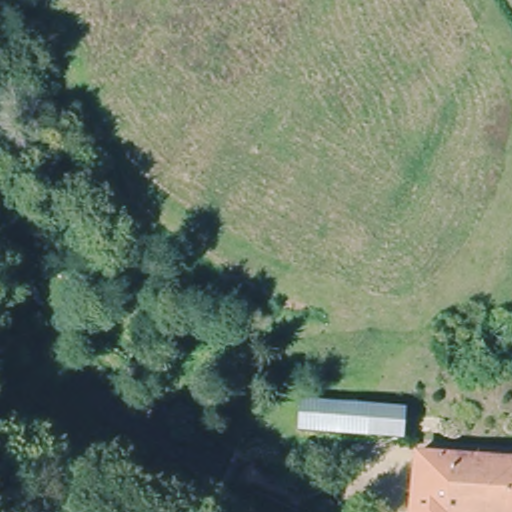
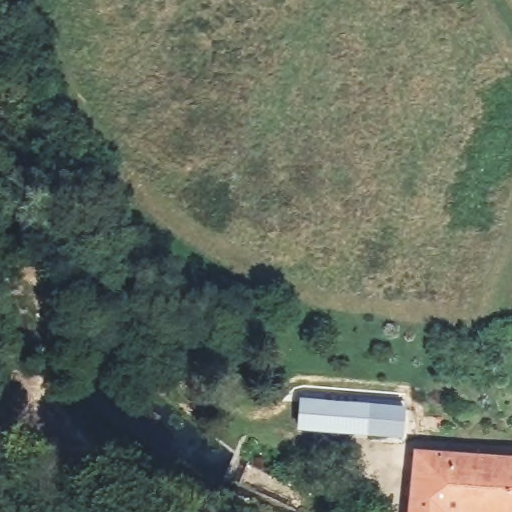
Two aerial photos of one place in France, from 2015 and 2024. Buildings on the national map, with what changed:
unchanged [(407,407),(405,436),(301,426),(305,398),(407,407)]
unchanged [(322,449),(351,451),(350,466),(321,464),(322,449)]
unchanged [(512,462),(512,508),(511,512),(408,512),(415,452),(512,462)]

